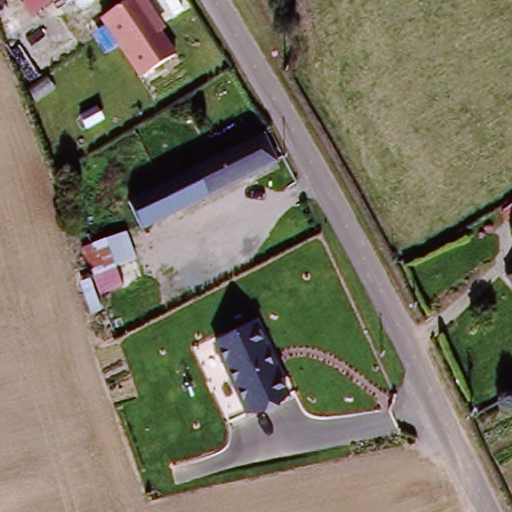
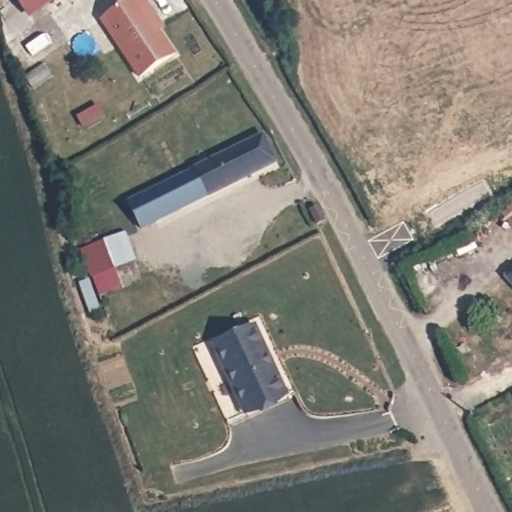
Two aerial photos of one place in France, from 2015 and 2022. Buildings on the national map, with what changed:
unchanged [(10,0),(40,0),(21,14),(10,0)]
unchanged [(100,21),(134,0),(147,0),(151,6),(146,10),(174,55),(135,79),(100,21)]
unchanged [(79,125),(95,116),(103,127),(87,139),(79,125)]
unchanged [(144,229),(130,201),(265,132),(280,161),(144,229)]
unchanged [(125,230),(146,287),(122,296),(102,240),(125,230)]
unchanged [(99,306),(76,249),(102,240),(122,296),(99,306)]
unchanged [(512,269),(512,277),(508,273),(512,269)]
unchanged [(288,397),(279,411),(259,420),(243,416),(212,348),(255,327),(288,397)]

